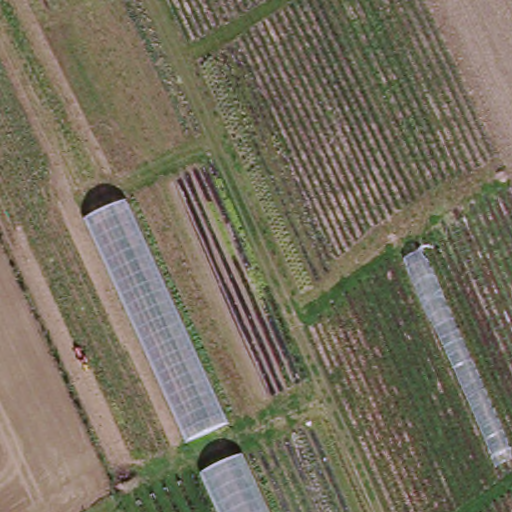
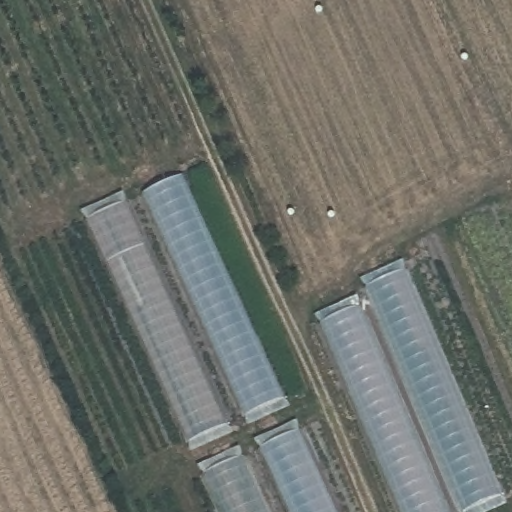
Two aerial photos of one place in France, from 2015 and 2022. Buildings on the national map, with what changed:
new [(183,176),(285,397),(245,415),(142,195),(183,176)]
unchanged [(127,202),(229,424),(186,442),(84,221),(127,202)]
new [(463,221),(512,331),(512,387),(441,231),(463,221)]
unchanged [(512,460),(496,468),(401,263),(422,251),(512,450),(512,460)]
new [(403,272),(496,493),(467,508),(366,284),(403,272)]
new [(361,306),(448,512),(402,512),(321,323),(361,306)]
new [(300,431),(337,512),(289,512),(261,449),(300,431)]
unchanged [(268,512),(218,512),(201,475),(242,455),(268,512)]

